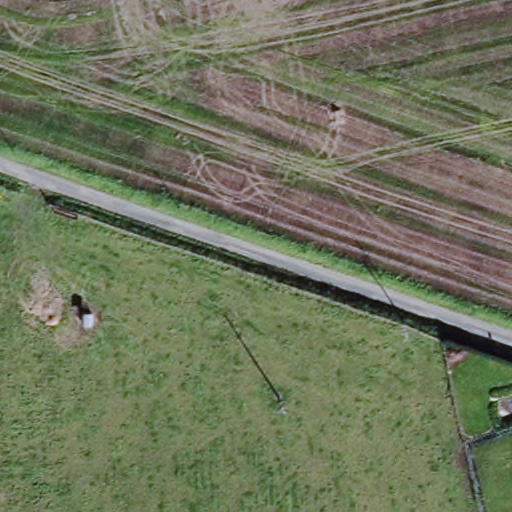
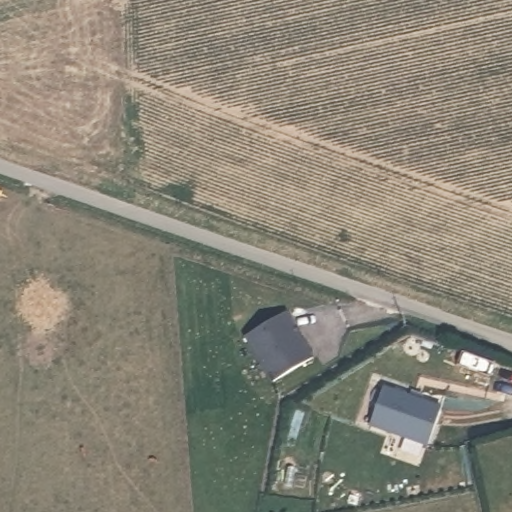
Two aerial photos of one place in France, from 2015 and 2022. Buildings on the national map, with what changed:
new [(289,313),(314,359),(273,381),(248,336),(289,313)]
new [(387,383),(444,404),(429,442),(372,419),(387,383)]

